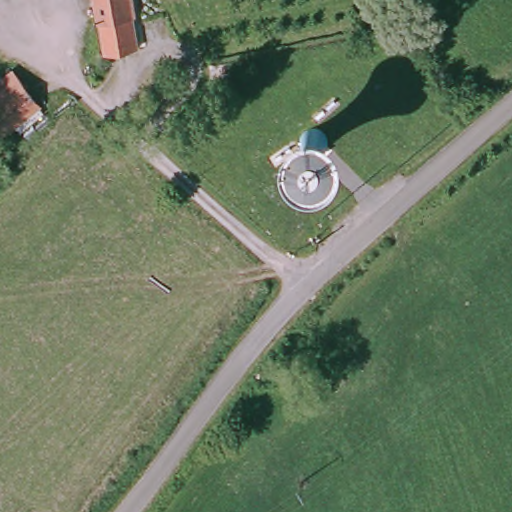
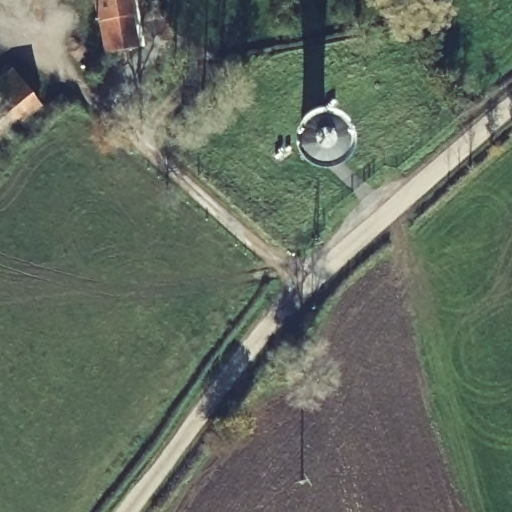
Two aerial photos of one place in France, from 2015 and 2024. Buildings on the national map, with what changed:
unchanged [(112,43),(104,12),(101,0),(134,0),(135,3),(132,3),(141,34),(112,43)]
unchanged [(14,75),(35,95),(0,126),(0,90),(14,75)]
unchanged [(35,95),(45,104),(49,108),(1,156),(0,156),(0,126),(35,95)]

